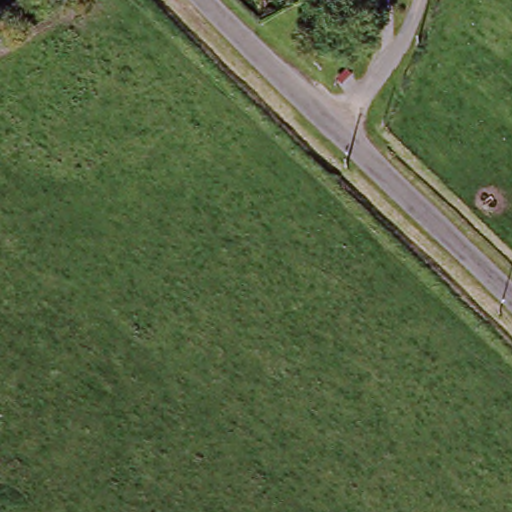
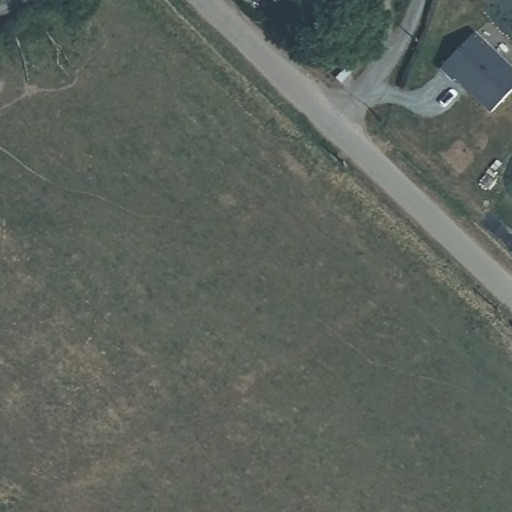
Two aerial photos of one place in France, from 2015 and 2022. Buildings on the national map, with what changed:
new [(512,70),(512,91),(495,109),(460,75),(454,81),(441,69),(475,34),(512,70)]

